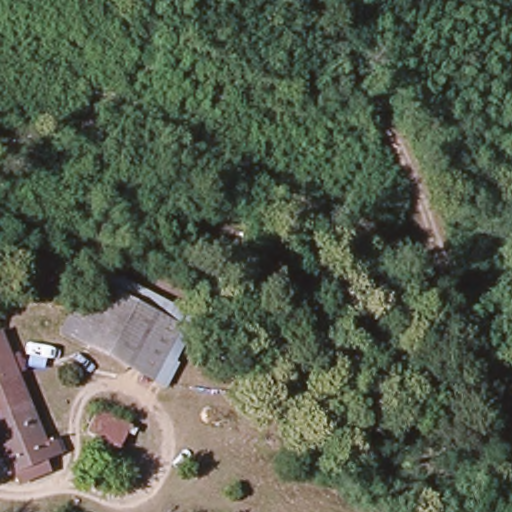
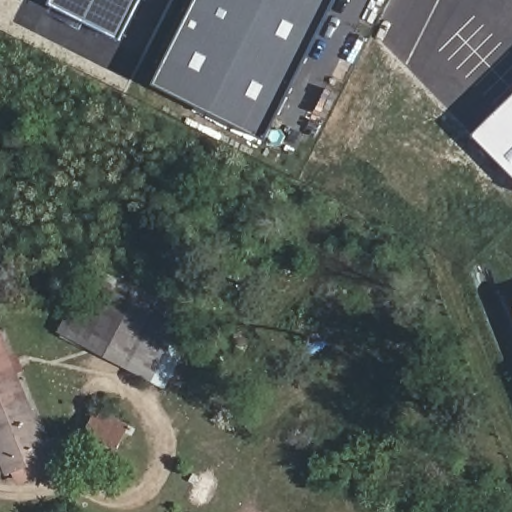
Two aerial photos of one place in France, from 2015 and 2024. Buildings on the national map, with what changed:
new [(119,39),(51,4),(53,0),(139,0),(119,39)]
new [(154,84),(196,0),(255,0),(201,107),(154,84)]
new [(265,141),(200,109),(255,0),(336,0),(265,141)]
new [(512,98),(512,173),(474,135),(512,98)]
unchanged [(177,324),(150,378),(59,329),(88,278),(177,324)]
unchanged [(54,426),(60,445),(49,450),(54,462),(28,473),(22,460),(9,465),(0,441),(0,329),(41,431),(54,426)]
unchanged [(115,453),(79,434),(92,411),(127,429),(115,453)]

